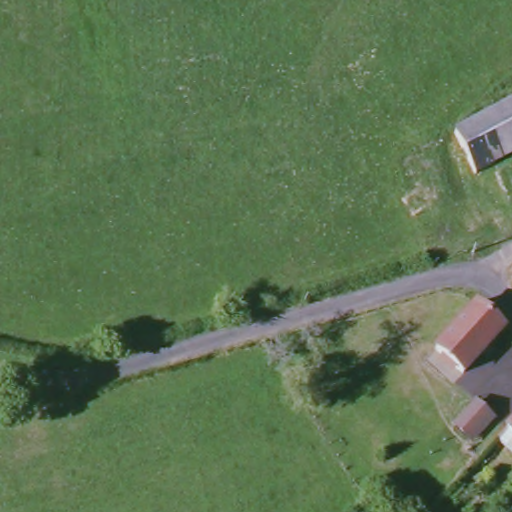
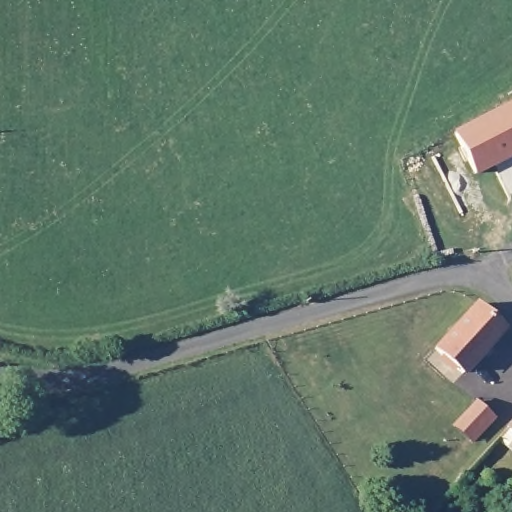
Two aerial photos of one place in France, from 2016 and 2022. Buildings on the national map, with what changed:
unchanged [(459,132),(512,104),(512,156),(480,171),(459,132)]
unchanged [(429,206),(411,216),(401,197),(417,187),(429,206)]
unchanged [(512,341),(477,380),(436,339),(477,297),(512,330),(512,341)]
unchanged [(512,422),(493,441),(476,423),(495,405),(512,420),(512,422)]

